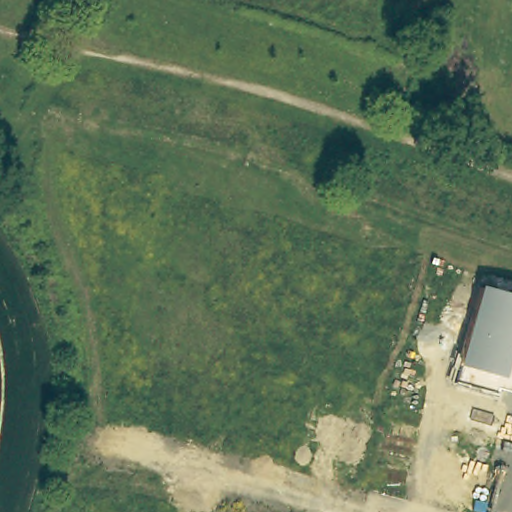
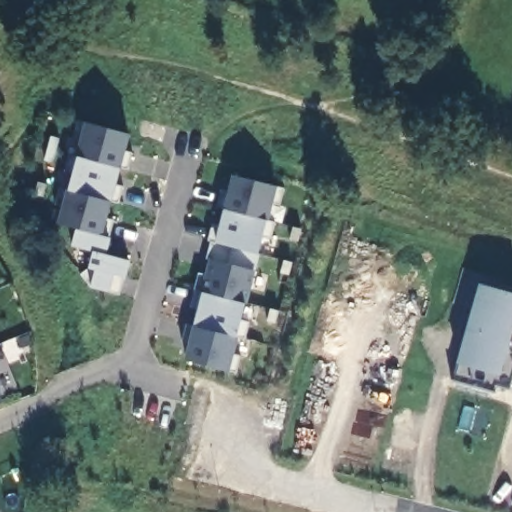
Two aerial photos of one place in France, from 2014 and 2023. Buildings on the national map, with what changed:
new [(126,150),(132,153),(127,169),(121,166),(117,184),(123,187),(119,204),(112,201),(107,218),(113,222),(110,239),(107,255),(130,261),(126,277),(119,295),(109,293),(90,289),(95,270),(88,268),(92,253),(72,248),(79,230),(57,224),(69,190),(78,156),(84,122),(130,134),(126,150)]
new [(188,343),(182,342),(186,327),(192,327),(197,308),(191,307),(198,273),(204,275),(210,258),(206,258),(211,239),(215,240),(232,175),(277,187),(284,190),(280,206),(273,203),(268,220),(274,222),(270,239),(263,236),(258,254),(255,272),(245,303),(241,320),(248,322),(245,339),(238,336),(234,355),(240,357),(236,373),(184,360),(188,343)]
unchanged [(496,390),(495,393),(452,380),(458,365),(479,286),(512,293),(512,386),(509,393),(496,390)]
new [(1,402),(0,402),(0,398),(1,402)]

